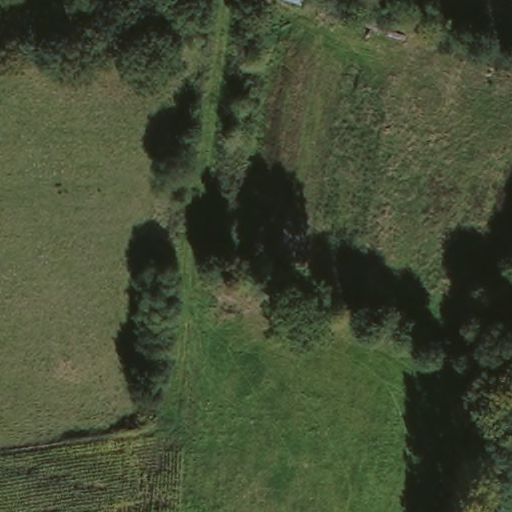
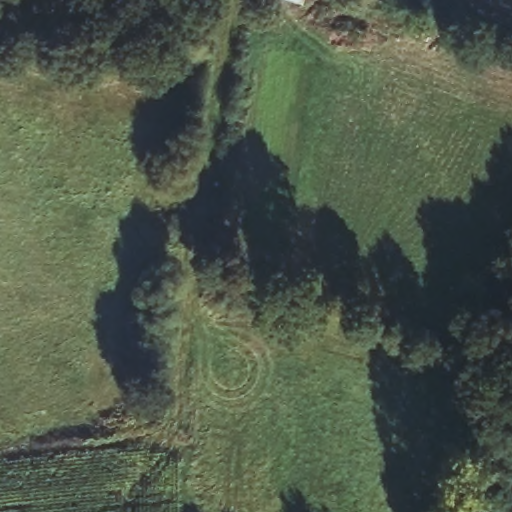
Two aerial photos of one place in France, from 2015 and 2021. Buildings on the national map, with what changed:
unchanged [(300,6),(279,0),(301,0),(300,6)]

